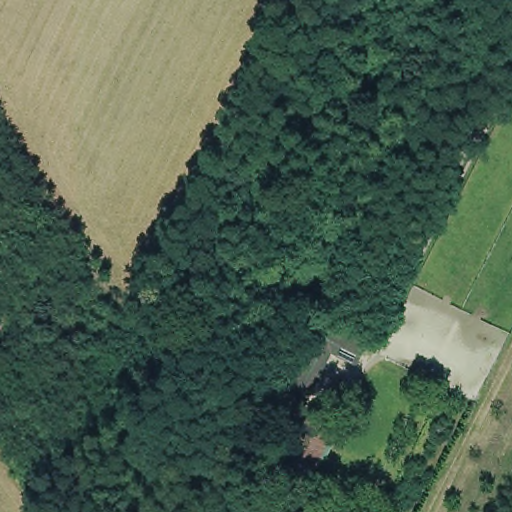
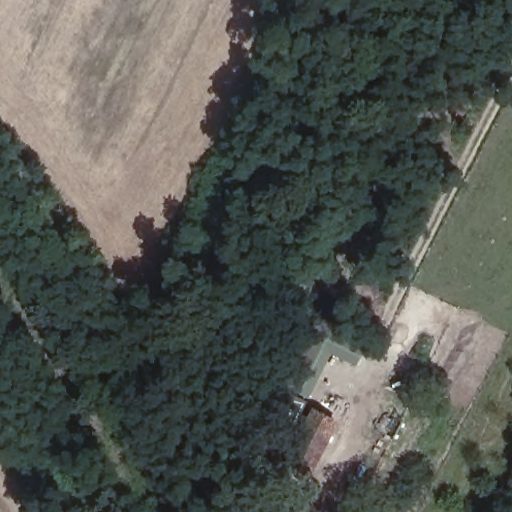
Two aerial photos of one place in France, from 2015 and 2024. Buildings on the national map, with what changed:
unchanged [(323,386),(301,373),(313,346),(340,360),(323,386)]
unchanged [(279,463),(303,410),(331,427),(310,478),(279,463)]

